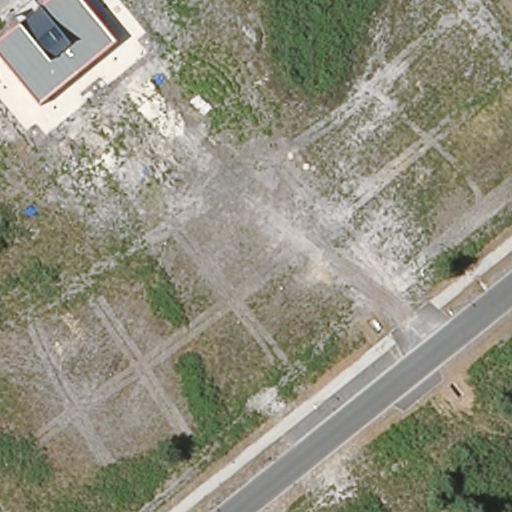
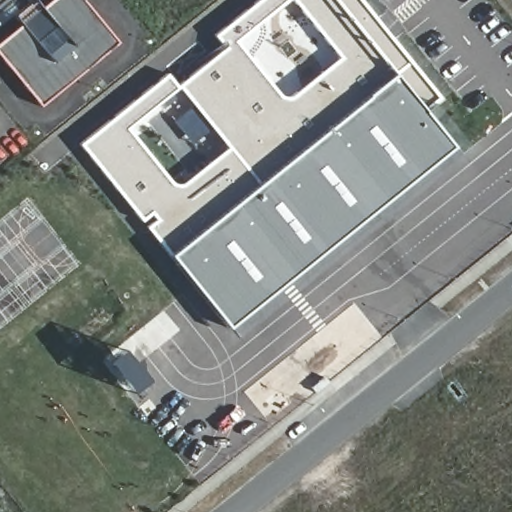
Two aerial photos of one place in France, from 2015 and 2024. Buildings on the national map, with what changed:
unchanged [(0,55),(0,42),(49,0),(84,0),(117,41),(40,105),(0,55)]
new [(169,70),(178,85),(230,42),(218,32),(258,0),(285,0),(238,38),(279,92),(287,96),(295,92),(345,53),(303,0),(363,0),(437,91),(412,113),(441,147),(228,323),(172,251),(84,141),(169,70)]

